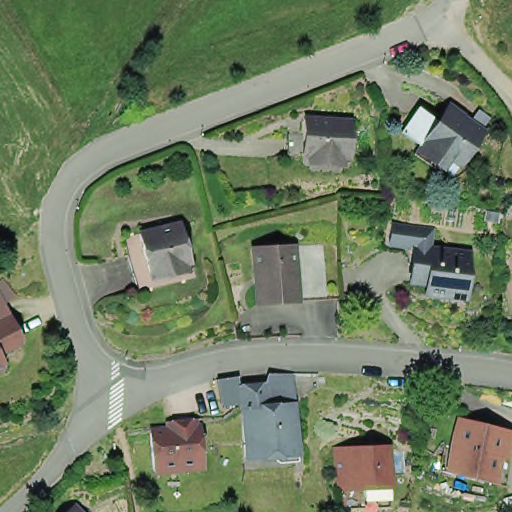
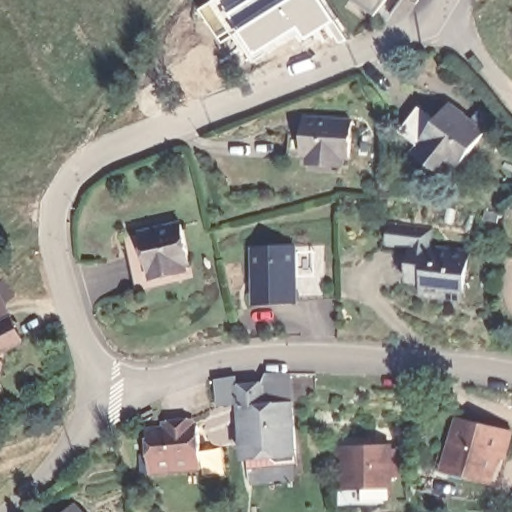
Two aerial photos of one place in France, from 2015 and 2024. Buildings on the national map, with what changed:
new [(341,44),(331,29),(308,45),(300,33),(255,62),(235,34),(223,44),(200,9),(215,0),(320,0),(348,41),(341,44)]
new [(368,22),(344,0),(386,0),(368,22)]
new [(406,1),(405,0),(407,0),(406,1)]
unchanged [(466,165),(447,151),(442,158),(426,146),(457,104),(472,114),(470,116),(491,131),(466,165)]
unchanged [(295,132),(310,133),(310,117),(358,120),(355,156),(342,155),(342,160),(321,159),(321,154),(308,153),(293,152),(295,132)]
unchanged [(200,261),(184,265),(185,267),(161,273),(161,270),(159,271),(150,232),(191,223),(200,261)]
unchanged [(205,275),(148,289),(135,236),(150,232),(159,271),(161,270),(161,273),(185,267),(184,265),(200,261),(205,275)]
unchanged [(326,298),(297,300),(297,295),(277,296),(278,301),(256,302),(254,247),(295,245),(324,243),(326,298)]
unchanged [(427,282),(410,280),(415,245),(470,252),(464,297),(445,294),(426,292),(427,282)]
new [(16,294),(5,300),(17,311),(0,320),(0,280),(3,277),(16,294)]
unchanged [(25,333),(1,358),(3,372),(0,373),(0,320),(17,311),(25,333)]
unchanged [(241,465),(236,409),(219,410),(215,378),(237,376),(239,384),(263,381),(263,373),(292,370),(301,461),(241,465)]
unchanged [(151,475),(146,427),(168,425),(167,417),(196,416),(196,426),(202,426),(205,472),(151,475)]
unchanged [(502,488),(443,471),(456,420),(512,428),(512,445),(502,488)]
unchanged [(350,493),(345,449),(391,443),(393,495),(350,493)]
unchanged [(90,512),(73,512),(82,503),(90,512)]

